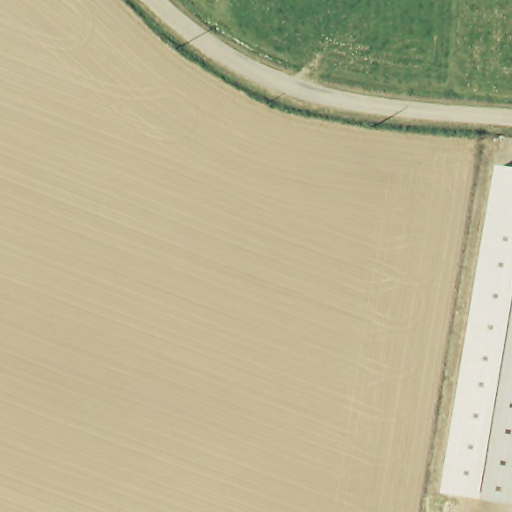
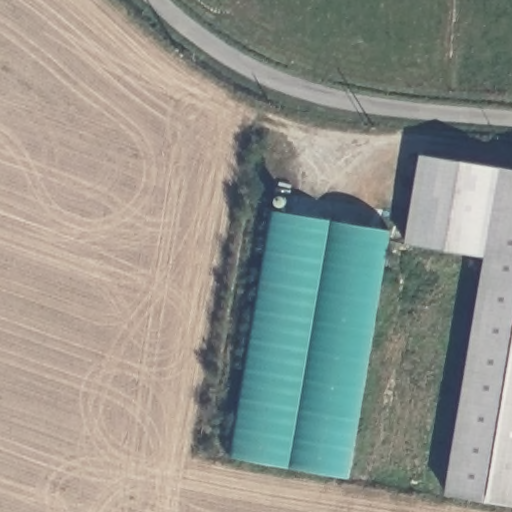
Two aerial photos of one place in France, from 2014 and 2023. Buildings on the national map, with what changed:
new [(405,244),(420,155),(498,166),(483,257),(405,244)]
unchanged [(512,169),(512,507),(444,496),(498,166),(512,169)]
new [(347,478),(230,457),(271,210),(390,229),(347,478)]

